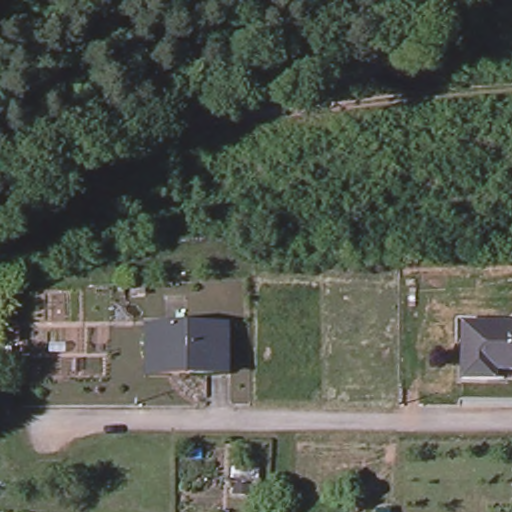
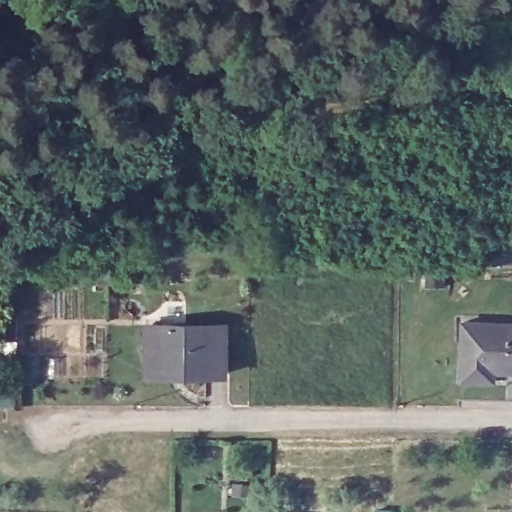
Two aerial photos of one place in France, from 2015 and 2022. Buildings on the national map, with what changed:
unchanged [(512,319),(512,364),(489,363),(489,375),(468,374),(470,318),(512,319)]
unchanged [(152,327),(229,326),(229,375),(193,375),(193,369),(152,370),(152,327)]

